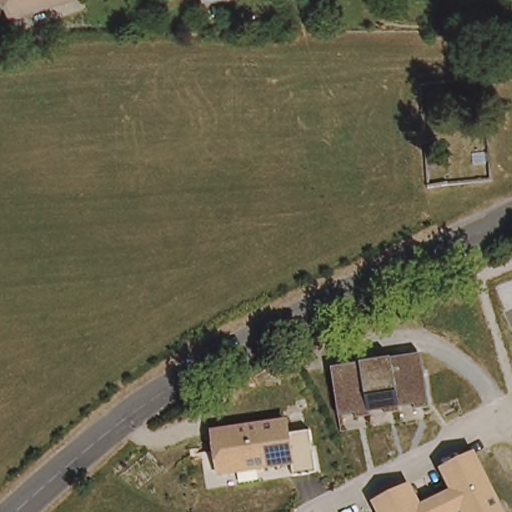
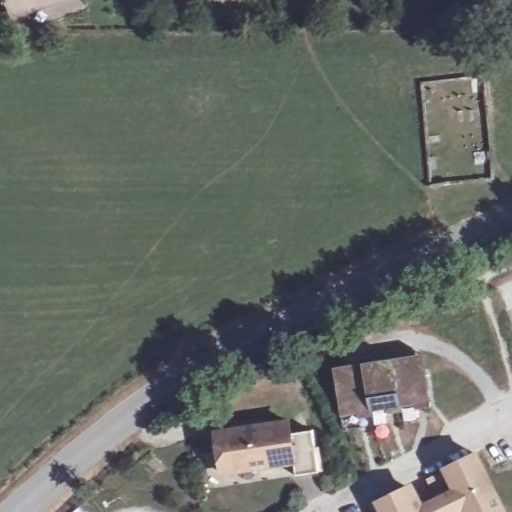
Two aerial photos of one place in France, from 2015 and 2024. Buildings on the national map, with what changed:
unchanged [(9,0),(64,0),(14,17),(9,0)]
unchanged [(215,0),(231,0),(216,4),(215,0)]
unchanged [(426,356),(432,407),(420,410),(416,406),(342,417),(334,370),(426,356)]
unchanged [(314,432),(318,449),(323,448),(323,470),(294,473),(294,466),(222,476),(215,431),(294,421),(296,435),(314,432)]
unchanged [(509,512),(379,512),(376,503),(413,485),(423,506),(452,491),(442,470),(479,452),(509,512)]

